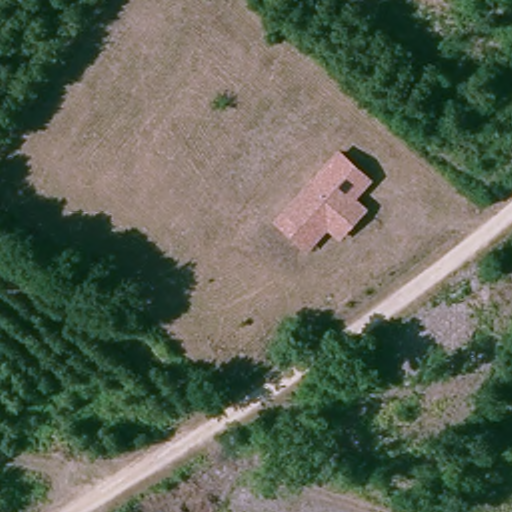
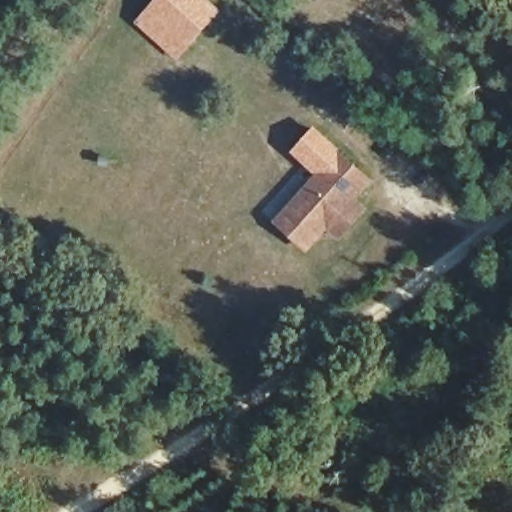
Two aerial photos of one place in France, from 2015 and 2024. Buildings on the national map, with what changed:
new [(179,60),(136,21),(155,0),(210,0),(221,11),(179,60)]
unchanged [(280,219),(290,207),(342,152),(372,180),(355,198),(367,209),(343,235),(331,224),(320,235),(310,246),(280,219)]

